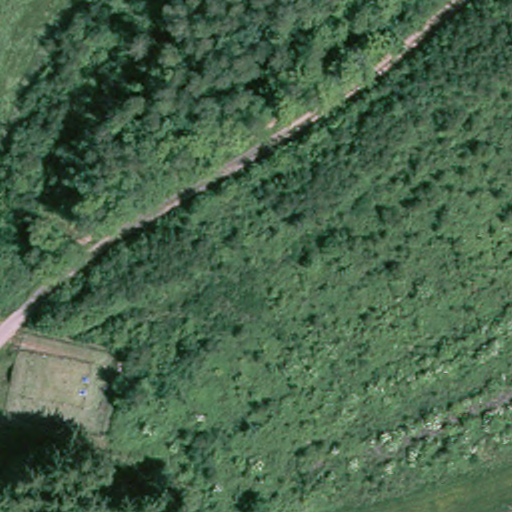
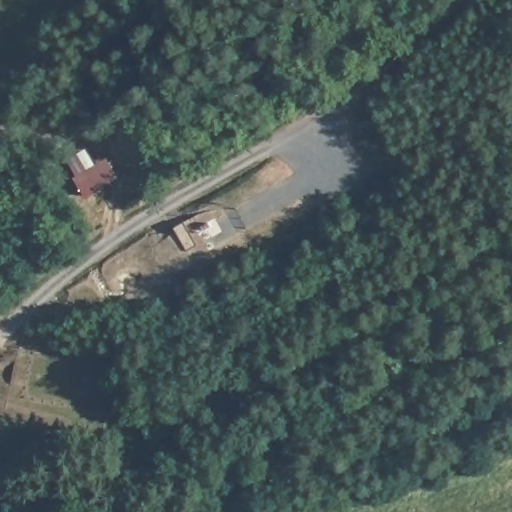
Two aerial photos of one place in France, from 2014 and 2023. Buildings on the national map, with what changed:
new [(118,177),(85,198),(72,176),(76,174),(68,161),(79,154),(88,168),(105,157),(118,177)]

